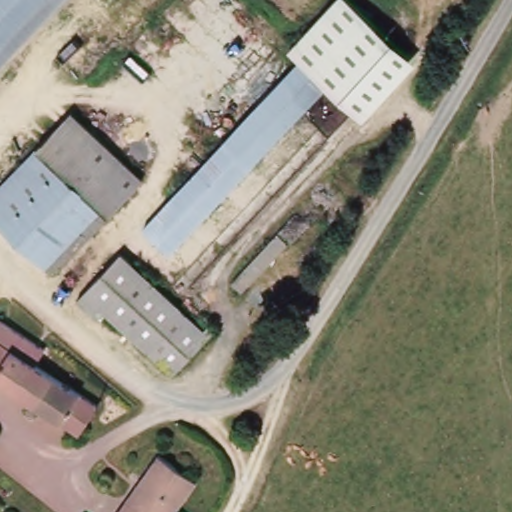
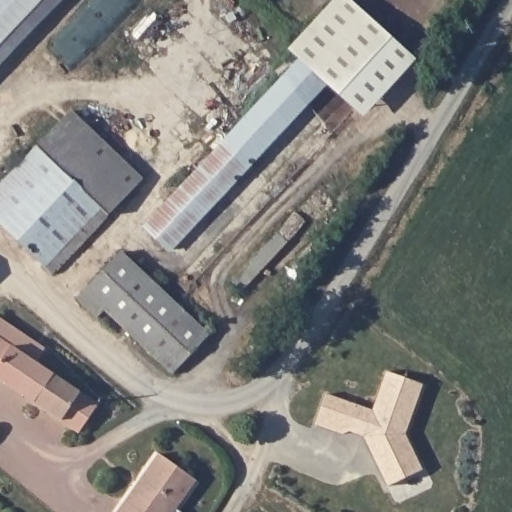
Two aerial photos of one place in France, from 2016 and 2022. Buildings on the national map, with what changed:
unchanged [(0,59),(0,3),(3,0),(56,0),(0,59)]
unchanged [(298,47),(342,0),(355,0),(414,55),(365,108),(334,81),(177,246),(152,221),(309,58),(298,47)]
unchanged [(77,114),(151,182),(124,211),(107,195),(50,141),(77,114)]
unchanged [(107,195),(53,255),(0,206),(0,194),(50,141),(107,195)]
unchanged [(124,211),(69,269),(53,255),(107,195),(124,211)]
unchanged [(130,254),(217,340),(185,370),(161,360),(112,310),(102,320),(95,313),(83,302),(117,267),(130,254)]
unchanged [(58,350),(48,365),(106,404),(88,431),(0,371),(0,322),(2,323),(7,315),(58,350)]
new [(424,383),(407,434),(426,471),(388,488),(365,437),(349,431),(343,435),(316,425),(326,395),(374,410),(387,372),(424,383)]
unchanged [(180,512),(122,512),(123,510),(133,497),(160,461),(198,490),(180,512)]

